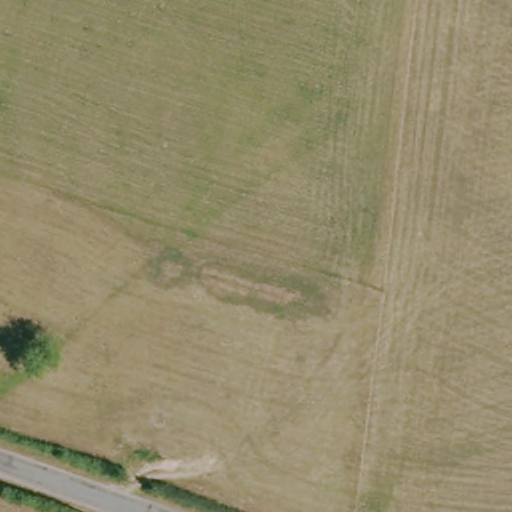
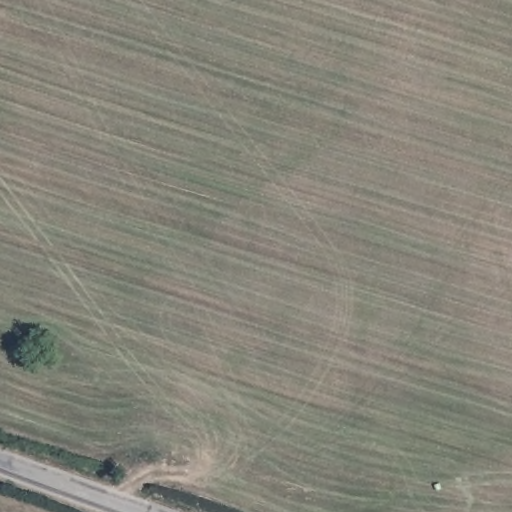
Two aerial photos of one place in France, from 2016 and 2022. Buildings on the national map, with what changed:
[]

